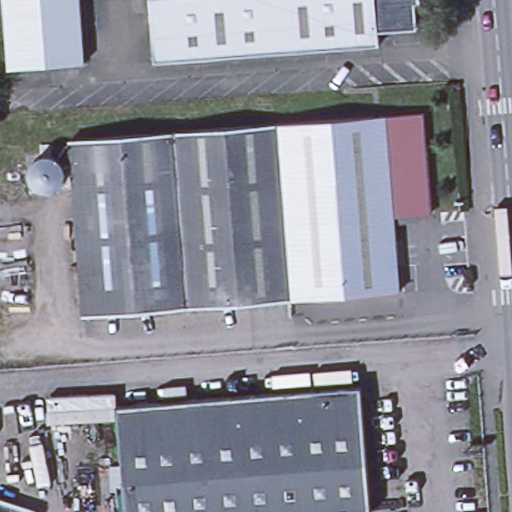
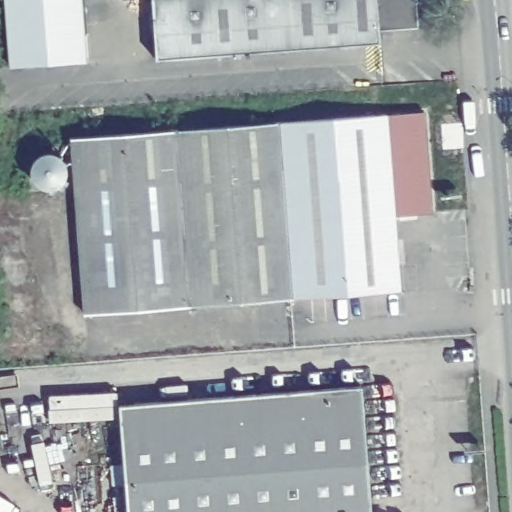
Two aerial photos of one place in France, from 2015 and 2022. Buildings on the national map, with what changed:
unchanged [(5,0),(86,0),(90,61),(9,68),(5,0)]
unchanged [(160,57),(156,0),(421,0),(424,25),(384,28),(384,42),(160,57)]
unchanged [(432,110),(438,213),(401,215),(405,290),(83,313),(72,136),(432,110)]
unchanged [(376,512),(114,512),(112,468),(129,463),(122,407),(364,385),(376,512)]

